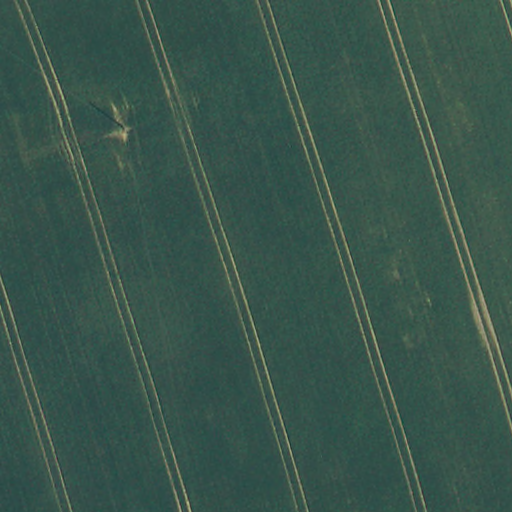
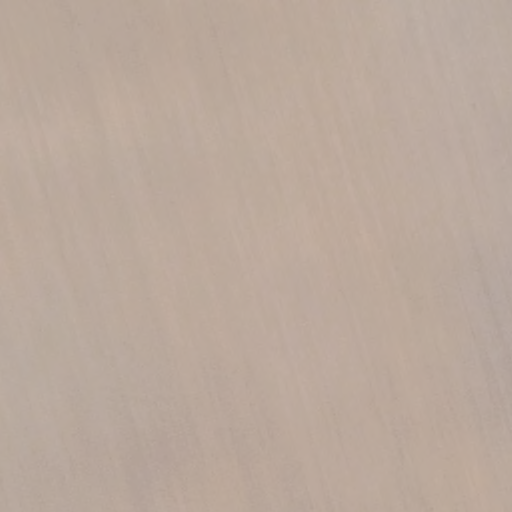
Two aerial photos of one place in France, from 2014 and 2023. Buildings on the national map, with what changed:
[]

